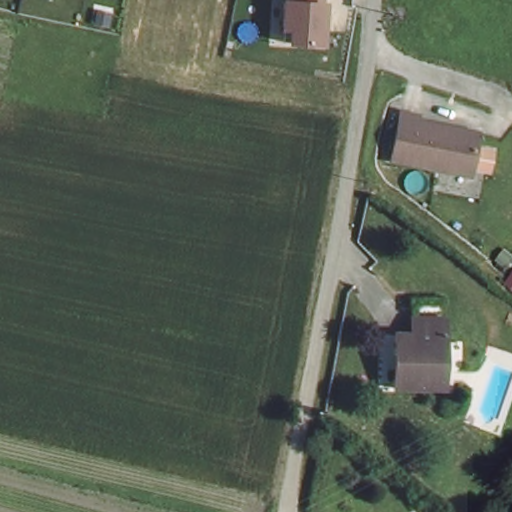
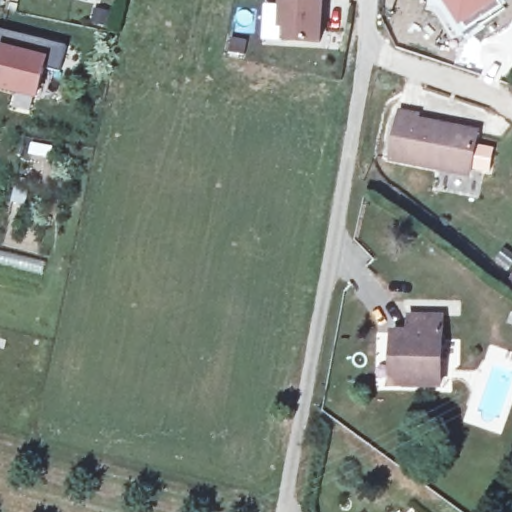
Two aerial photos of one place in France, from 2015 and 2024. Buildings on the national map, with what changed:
unchanged [(281,0),(324,0),(321,45),(277,42),(281,0)]
new [(457,39),(434,12),(425,8),(426,0),(505,0),(508,4),(475,28),(457,39)]
new [(44,70),(38,97),(0,88),(0,31),(67,47),(59,72),(44,70)]
unchanged [(477,129),(469,172),(390,157),(398,109),(417,112),(415,117),(477,129)]
unchanged [(442,325),(440,390),(397,388),(398,360),(392,359),(391,337),(410,338),(411,323),(442,325)]

